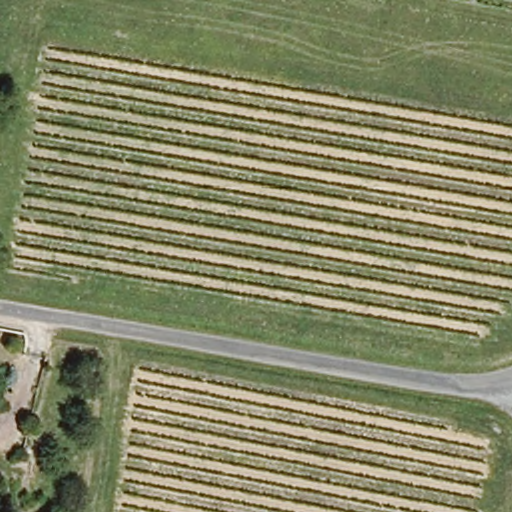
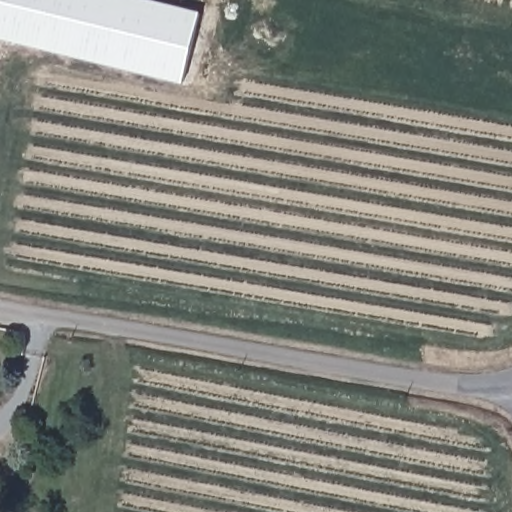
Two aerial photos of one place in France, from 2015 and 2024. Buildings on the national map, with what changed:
new [(0,0),(150,0),(201,12),(183,84),(0,38),(0,0)]

